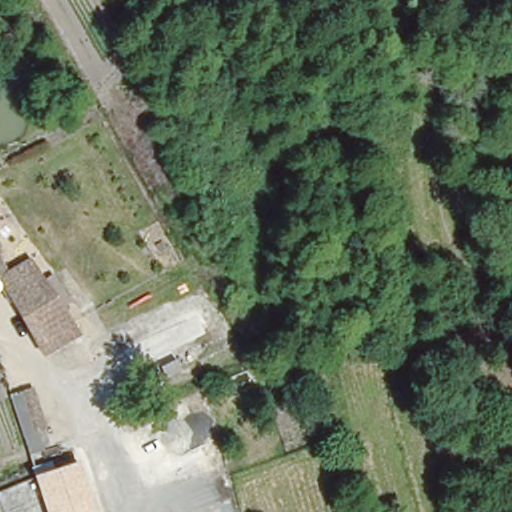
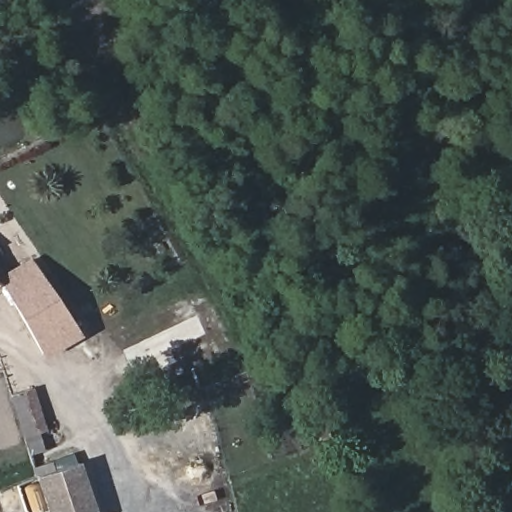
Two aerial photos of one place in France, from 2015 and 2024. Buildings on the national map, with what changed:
unchanged [(72,340),(36,356),(0,289),(0,279),(25,265),(72,340)]
unchanged [(35,386),(50,434),(40,439),(51,469),(79,463),(94,512),(46,512),(5,394),(35,386)]

